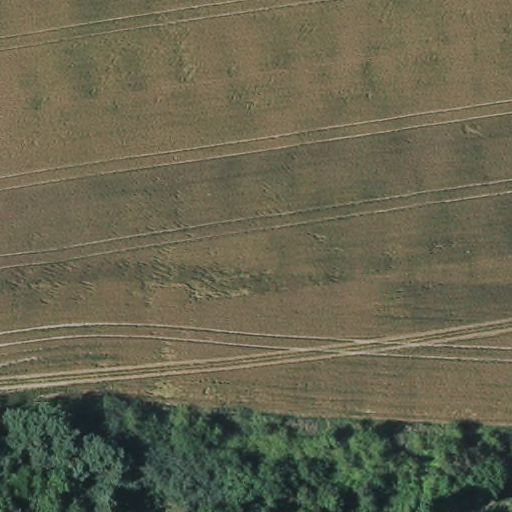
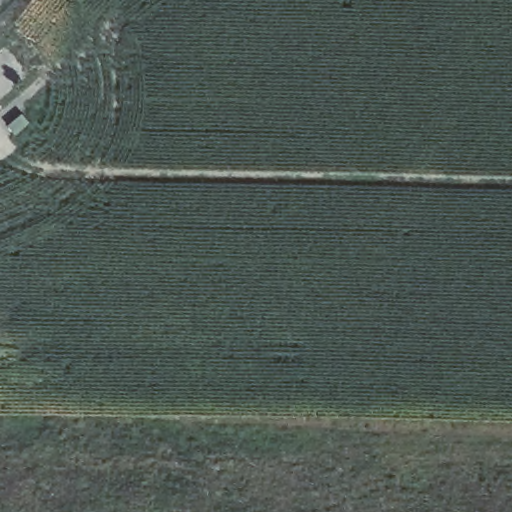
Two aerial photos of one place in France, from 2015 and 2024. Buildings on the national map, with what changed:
[]

